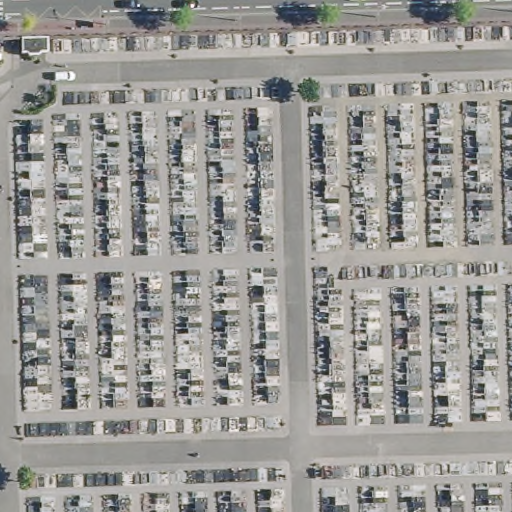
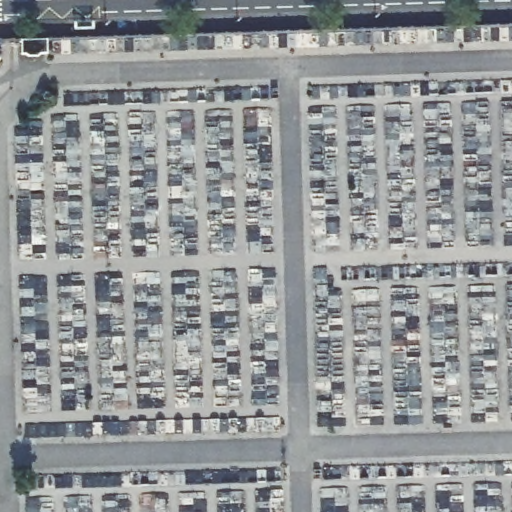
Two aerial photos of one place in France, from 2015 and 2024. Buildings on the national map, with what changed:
[]

